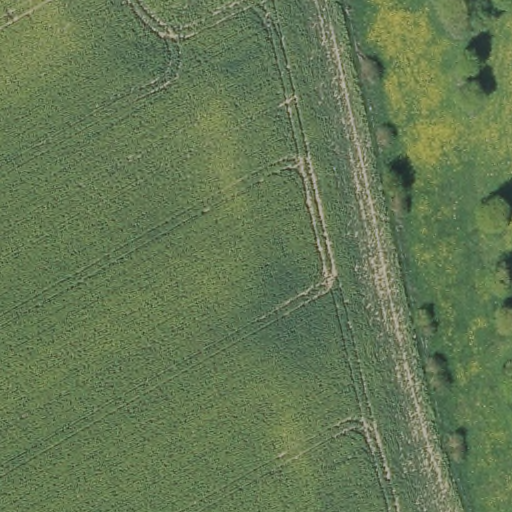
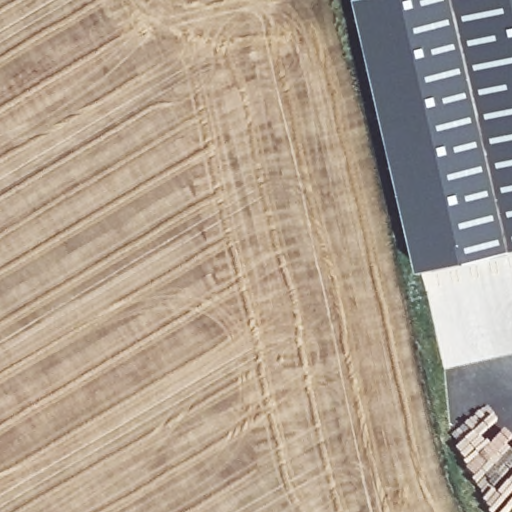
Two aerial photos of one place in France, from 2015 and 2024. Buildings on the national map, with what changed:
new [(419,267),(359,0),(512,0),(512,246),(419,267)]

